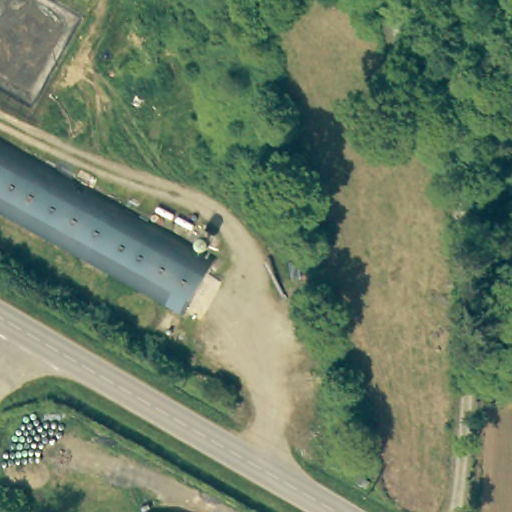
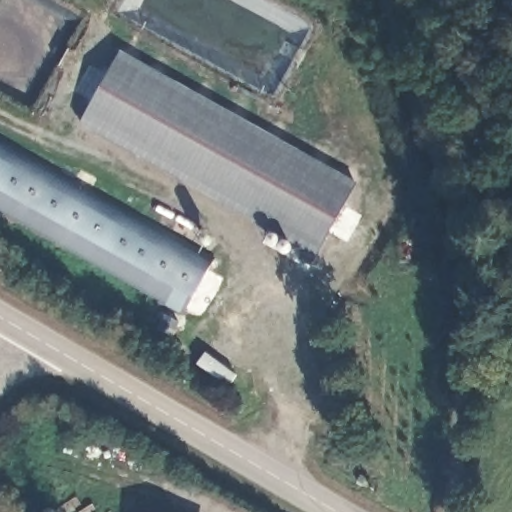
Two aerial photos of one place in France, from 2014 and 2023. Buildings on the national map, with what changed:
new [(310,266),(298,260),(306,247),(82,122),(121,50),(356,180),(310,266)]
unchanged [(176,313),(0,209),(0,134),(211,258),(176,313)]

